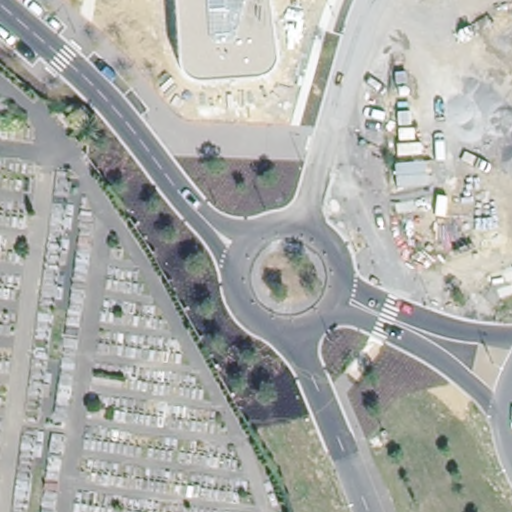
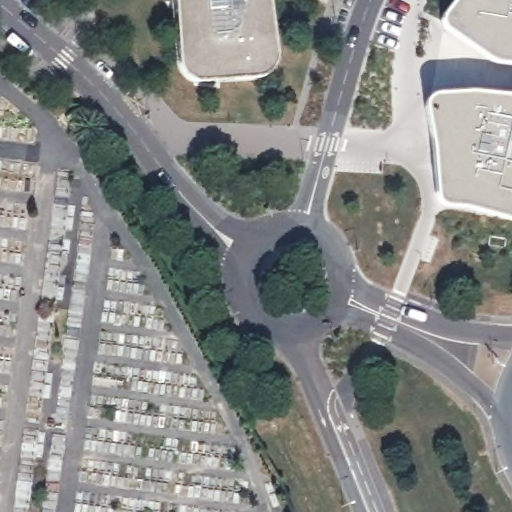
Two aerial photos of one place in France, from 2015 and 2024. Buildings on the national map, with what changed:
unchanged [(268,2),(274,56),(273,64),(267,70),(262,73),(255,75),(246,75),(197,79),(188,76),(182,70),(179,64),(178,56),(174,0),(268,0),(268,2)]
new [(486,57),(443,27),(441,19),(442,13),(445,8),(451,0),(512,0),(512,63),(495,61),(486,57)]
new [(446,204),(438,201),(436,194),(432,147),(424,106),(427,98),(432,95),(441,94),(472,92),(512,96),(512,218),(463,205),(446,204)]

